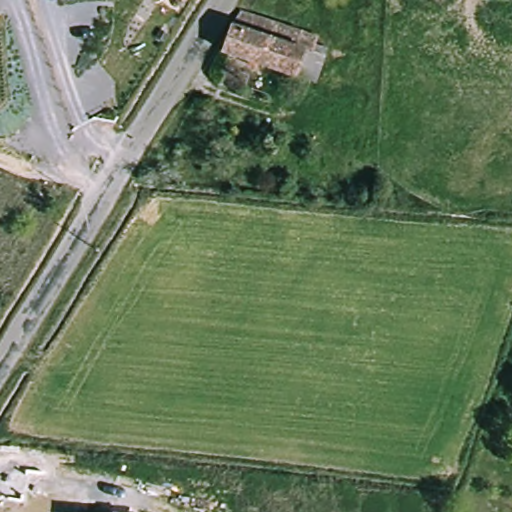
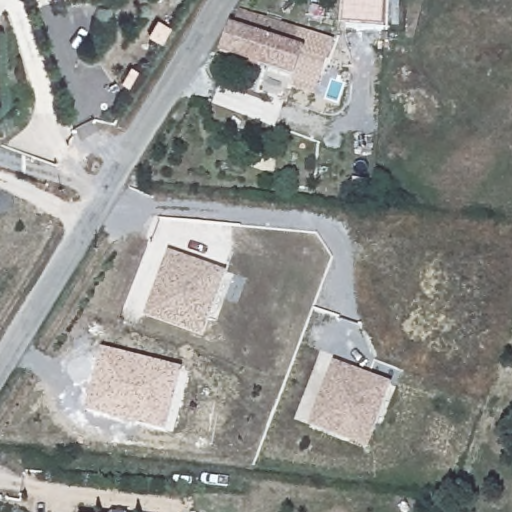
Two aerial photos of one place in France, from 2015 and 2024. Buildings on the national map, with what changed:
new [(346,0),(387,0),(385,27),(344,23),(346,0)]
unchanged [(325,52),(323,58),(334,62),(330,72),(299,62),(290,88),(219,65),(230,32),(236,23),(325,52)]
new [(191,329),(152,316),(173,252),(232,271),(216,320),(210,336),(191,329)]
new [(167,432),(86,411),(102,348),(183,369),(167,432)]
new [(354,439),(316,424),(340,361),(398,382),(380,430),(374,446),(354,439)]

